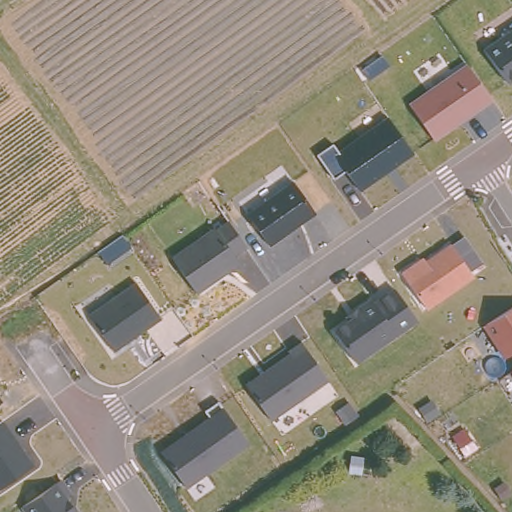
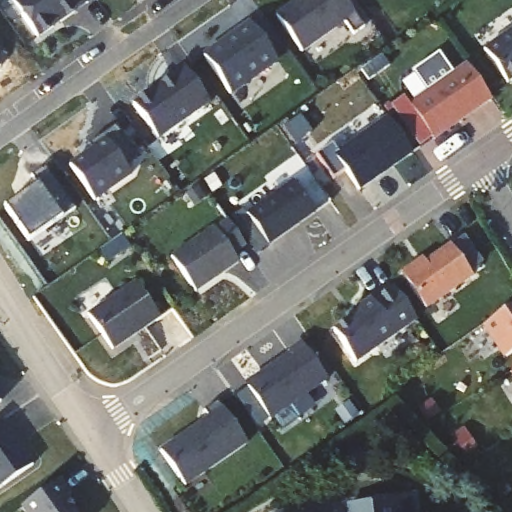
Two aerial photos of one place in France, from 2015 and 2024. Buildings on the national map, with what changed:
new [(16,0),(86,0),(88,3),(38,38),(13,2),(16,0)]
new [(365,28),(353,36),(345,23),(302,53),(275,15),(297,0),(346,0),(365,28)]
new [(278,61),(230,94),(203,56),(252,23),(278,61)]
unchanged [(508,83),(483,48),(512,27),(512,80),(508,83)]
unchanged [(433,142),(407,102),(427,88),(415,72),(440,55),(452,72),(467,63),(492,103),(433,142)]
new [(150,93),(152,95),(160,89),(159,87),(173,77),(174,78),(185,70),(185,69),(185,68),(210,104),(158,140),(133,105),(150,93)]
new [(313,133),(297,144),(285,128),(302,116),(313,133)]
unchanged [(412,153),(360,188),(347,172),(335,179),(317,153),(333,142),(340,151),(389,117),(412,153)]
new [(139,157),(126,166),(132,175),(94,202),(69,166),(92,150),(87,144),(116,124),(139,157)]
new [(75,209),(28,242),(4,207),(37,184),(32,176),(45,166),(75,209)]
unchanged [(314,210),(268,243),(247,213),(292,180),(314,210)]
new [(199,187),(207,198),(195,206),(188,195),(199,187)]
new [(257,257),(245,239),(233,221),(245,213),(257,231),(270,248),(257,257)]
unchanged [(246,249),(236,257),(240,263),(195,292),(170,255),(225,217),(246,249)]
new [(122,235),(131,248),(118,256),(106,265),(97,253),(110,244),(122,235)]
unchanged [(426,260),(450,243),(452,246),(463,238),(480,260),(470,267),(475,276),(426,308),(402,271),(422,257),(426,260)]
unchanged [(161,318),(114,350),(87,312),(133,281),(161,318)]
unchanged [(417,323),(357,365),(331,327),(345,318),(342,314),(371,295),(374,299),(394,285),(417,323)]
unchanged [(506,357),(484,325),(512,307),(512,353),(506,357)]
unchanged [(330,380),(272,418),(247,383),(290,353),(287,350),(302,340),(330,380)]
unchanged [(0,402),(0,398),(2,401),(0,402)]
unchanged [(250,443),(185,486),(160,447),(207,415),(202,409),(219,399),(250,443)]
new [(358,415),(346,424),(337,411),(350,403),(358,415)]
new [(299,419),(282,430),(274,418),(290,406),(299,419)]
unchanged [(0,489),(0,421),(3,418),(35,464),(0,489)]
unchanged [(69,500),(78,512),(27,512),(22,506),(62,480),(75,495),(69,500)]

